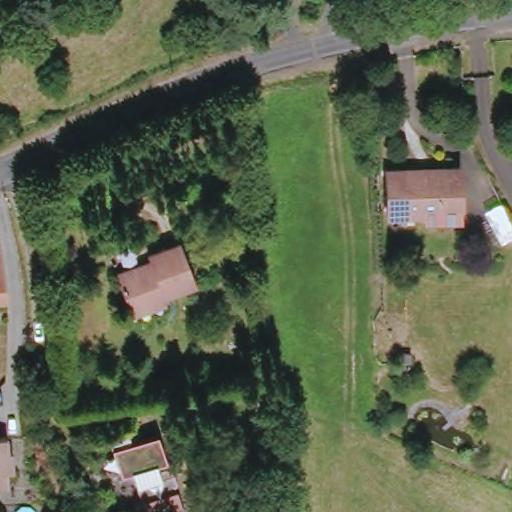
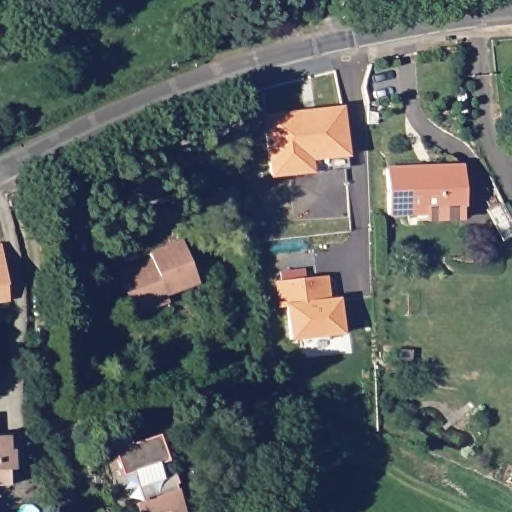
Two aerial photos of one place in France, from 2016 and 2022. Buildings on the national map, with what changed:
new [(269,177),(261,115),(343,106),(347,156),(311,160),(312,174),(269,177)]
unchanged [(410,220),(410,209),(390,208),(391,164),(457,169),(465,169),(462,221),(452,221),(410,220)]
unchanged [(139,317),(137,309),(120,276),(153,261),(150,253),(182,239),(200,281),(165,296),(169,305),(139,317)]
unchanged [(0,298),(0,248),(14,293),(0,298)]
new [(289,343),(285,308),(277,309),(274,282),(327,275),(330,298),(340,298),(344,335),(289,343)]
unchanged [(15,436),(15,472),(0,472),(0,437),(15,436)]
unchanged [(135,499),(177,483),(187,510),(183,512),(139,512),(135,499)]

